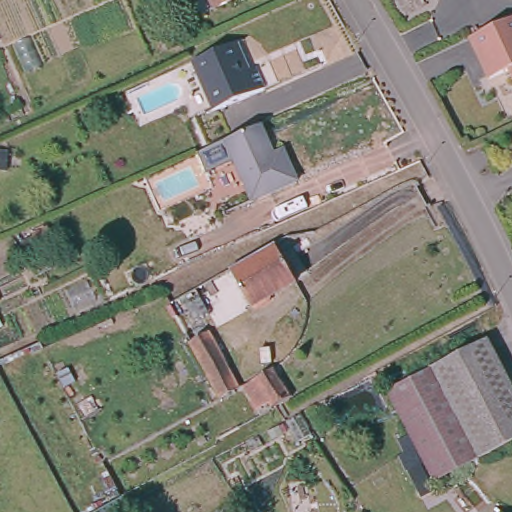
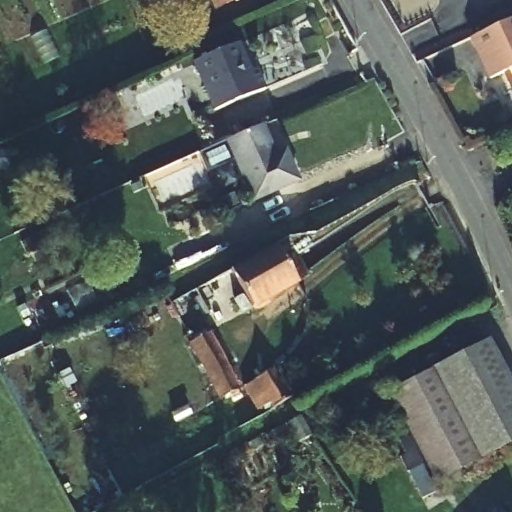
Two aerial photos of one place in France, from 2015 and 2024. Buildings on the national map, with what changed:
unchanged [(213,0),(236,0),(217,9),(213,0)]
unchanged [(512,25),(512,77),(512,75),(493,84),(474,41),(512,25)]
unchanged [(232,43),(244,70),(253,66),(264,89),(212,111),(190,62),(232,43)]
unchanged [(257,123),(270,153),(288,145),(302,175),(247,199),(220,139),(257,123)]
unchanged [(285,263),(292,259),(297,270),(292,274),(297,283),(270,298),(270,303),(259,309),(254,307),(252,308),(231,270),(275,245),(285,263)]
unchanged [(239,389),(222,399),(190,342),(177,318),(190,310),(204,334),(209,332),(239,389)]
unchanged [(490,474),(483,461),(482,458),(437,481),(387,386),(392,384),(395,389),(487,340),(512,389),(512,461),(490,474)]
unchanged [(278,366),(282,374),(279,376),(289,392),(257,411),(244,387),(278,366)]

